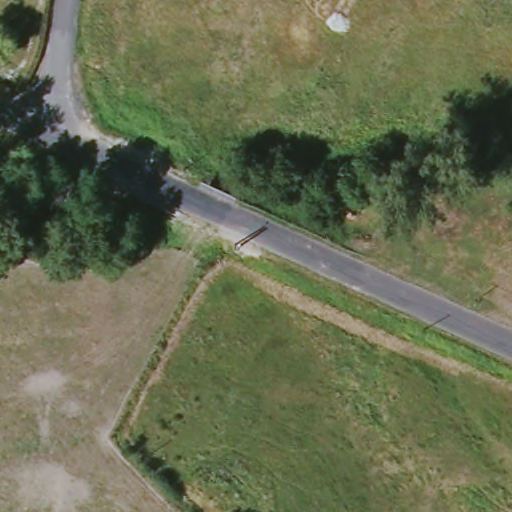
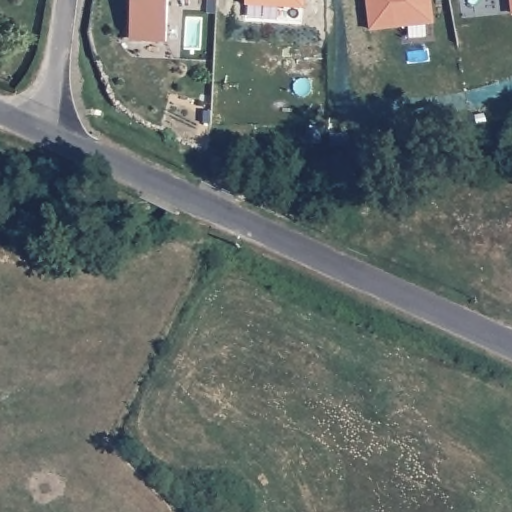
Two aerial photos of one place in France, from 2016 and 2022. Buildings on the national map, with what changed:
new [(133,42),(133,0),(169,0),(168,44),(133,42)]
new [(247,5),(247,0),(306,0),(306,9),(247,5)]
new [(371,30),(367,0),(431,0),(434,24),(371,30)]
new [(511,0),(512,0),(512,5),(511,0)]

